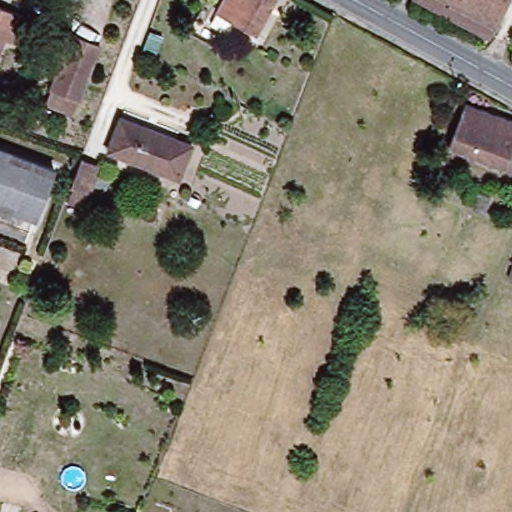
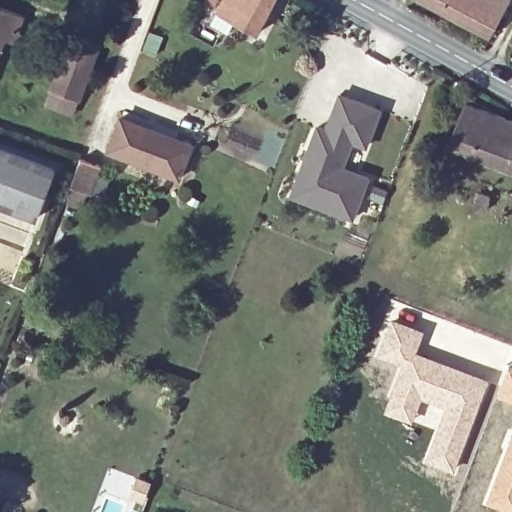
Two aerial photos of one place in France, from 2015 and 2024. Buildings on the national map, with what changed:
unchanged [(220,15),(227,0),(277,0),(258,35),(220,15)]
unchanged [(430,0),(506,0),(489,32),(430,0)]
unchanged [(1,43),(0,45),(0,5),(23,14),(12,46),(1,43)]
unchanged [(80,110),(46,97),(68,41),(102,53),(80,110)]
new [(315,127),(325,131),(338,96),(377,111),(363,147),(350,141),(339,169),(366,179),(350,220),(321,209),(290,196),(296,179),(315,127)]
unchanged [(512,118),(512,169),(450,145),(465,100),(512,118)]
unchanged [(182,142),(173,171),(121,150),(130,123),(182,142)]
unchanged [(35,217),(0,203),(0,150),(54,170),(35,217)]
unchanged [(80,161),(101,169),(90,195),(70,187),(80,161)]
new [(389,317),(425,330),(416,350),(489,379),(453,472),(422,461),(434,430),(382,412),(397,366),(373,356),(389,317)]
new [(508,365),(512,366),(512,404),(496,397),(508,365)]
new [(512,433),(512,512),(511,512),(485,500),(512,433)]

